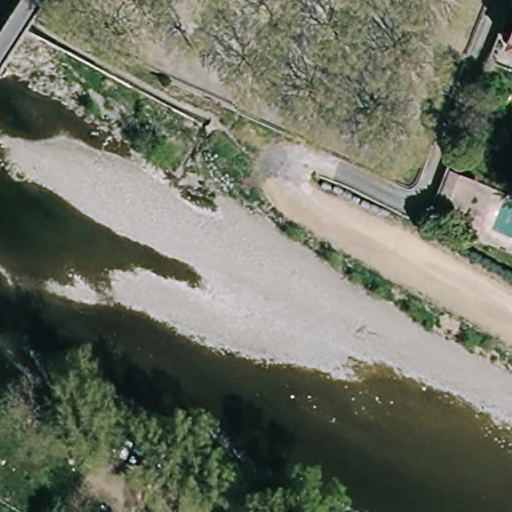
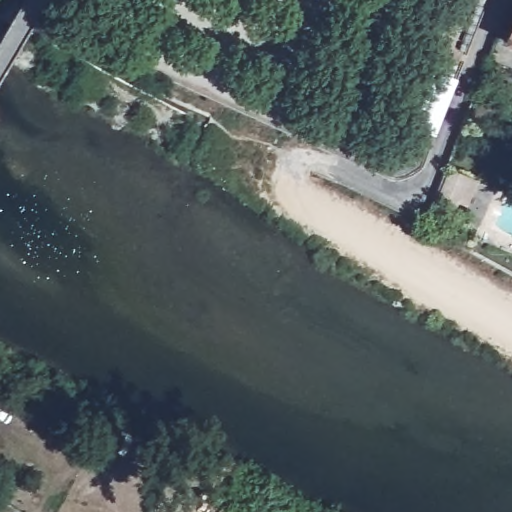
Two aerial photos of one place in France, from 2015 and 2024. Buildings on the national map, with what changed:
unchanged [(512,35),(512,40),(510,39),(512,35)]
unchanged [(479,184),(462,223),(435,211),(451,171),(479,184)]

